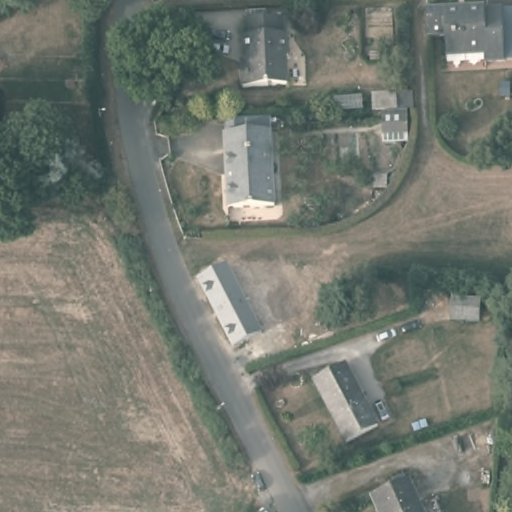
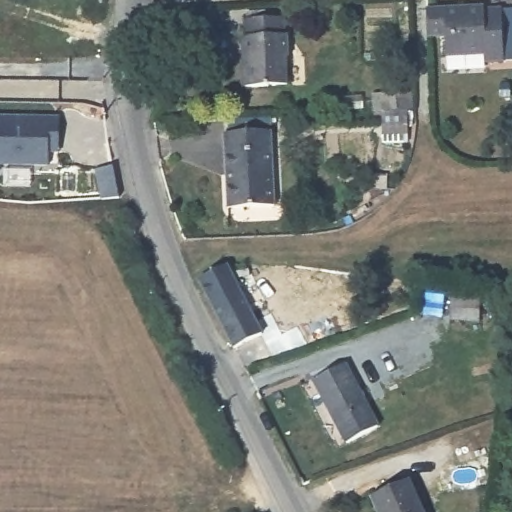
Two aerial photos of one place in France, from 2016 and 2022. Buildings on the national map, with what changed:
unchanged [(427,4),(427,3),(483,2),(483,4),(501,4),(503,56),(487,56),(486,50),(446,52),(445,32),(428,33),(427,4)]
unchanged [(285,35),(288,35),(290,57),(286,58),(286,85),(242,86),(241,63),(243,61),(241,36),(245,36),(245,18),(285,17),(285,35)]
unchanged [(382,119),(371,120),(371,94),(399,95),(399,117),(406,118),(409,145),(380,148),(382,119)]
new [(43,152),(43,166),(0,164),(0,117),(54,118),(54,143),(53,152),(43,152)]
unchanged [(226,175),(224,132),(271,130),(274,206),(235,207),(227,207),(226,175)]
new [(108,165),(114,198),(97,198),(91,169),(108,165)]
unchanged [(229,262),(242,262),(269,312),(259,318),(266,331),(237,346),(201,276),(229,262)]
unchanged [(480,317),(451,316),(452,295),(480,296),(480,317)]
unchanged [(379,423),(349,439),(316,379),(346,362),(379,423)]
unchanged [(381,512),(373,496),(410,479),(426,512),(381,512)]

